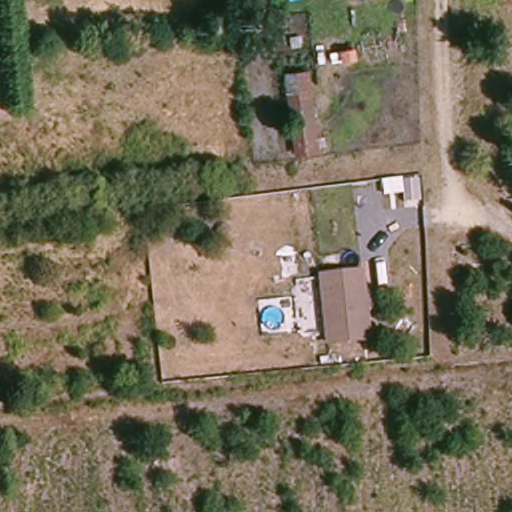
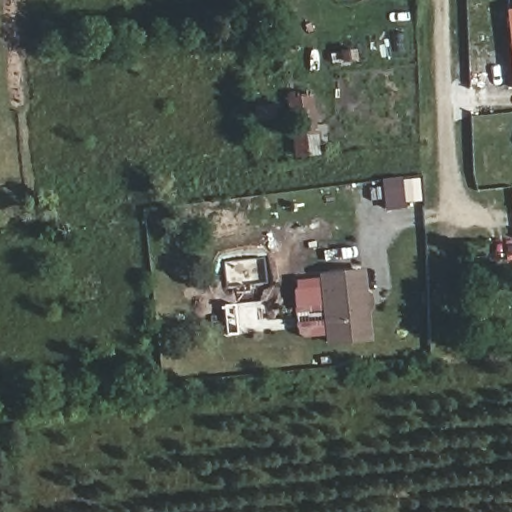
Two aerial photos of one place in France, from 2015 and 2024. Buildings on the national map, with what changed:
new [(506,9),(512,8),(512,62),(506,9)]
unchanged [(300,82),(306,159),(292,160),(285,161),(279,84),(285,83),(300,82)]
unchanged [(325,345),(317,274),(362,268),(370,339),(325,345)]

